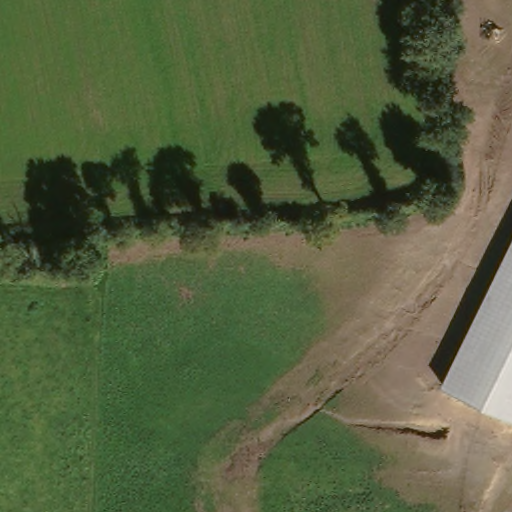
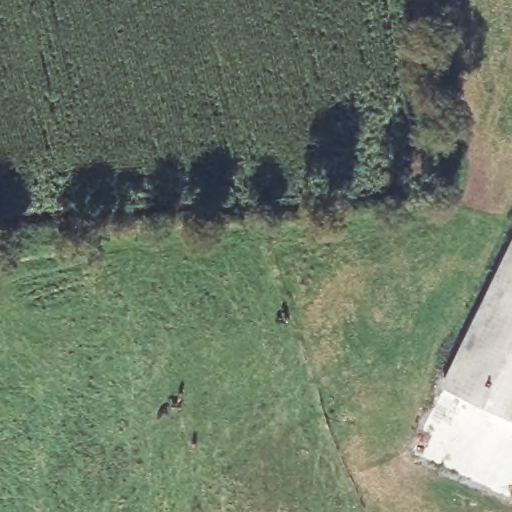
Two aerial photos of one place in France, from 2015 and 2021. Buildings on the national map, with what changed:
unchanged [(512,238),(512,420),(441,385),(512,238)]
unchanged [(69,246),(69,260),(82,259),(83,271),(22,273),(21,248),(69,246)]

